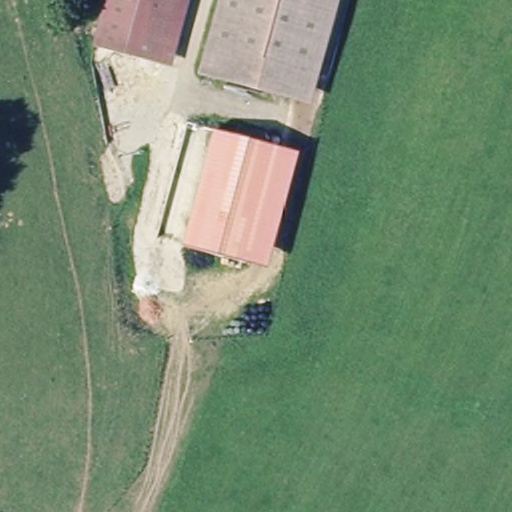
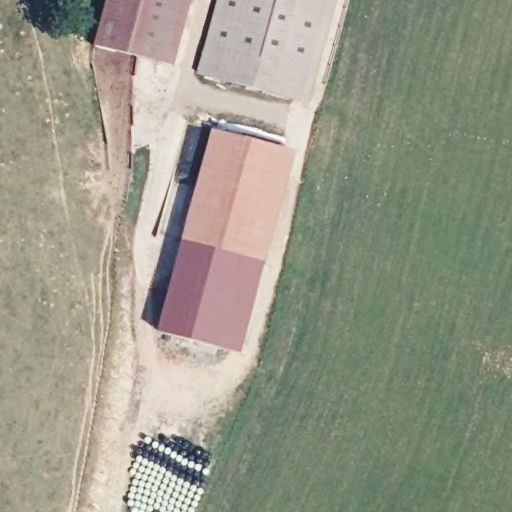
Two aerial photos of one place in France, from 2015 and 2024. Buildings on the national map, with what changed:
unchanged [(159,60),(99,44),(111,0),(175,0),(159,60)]
unchanged [(176,64),(159,60),(175,0),(193,0),(176,64)]
unchanged [(202,72),(221,0),(320,0),(293,97),(202,72)]
unchanged [(312,102),(293,97),(320,0),(340,0),(312,102)]
unchanged [(300,151),(268,267),(182,244),(212,128),(300,151)]
new [(245,355),(160,332),(182,244),(268,267),(245,355)]

